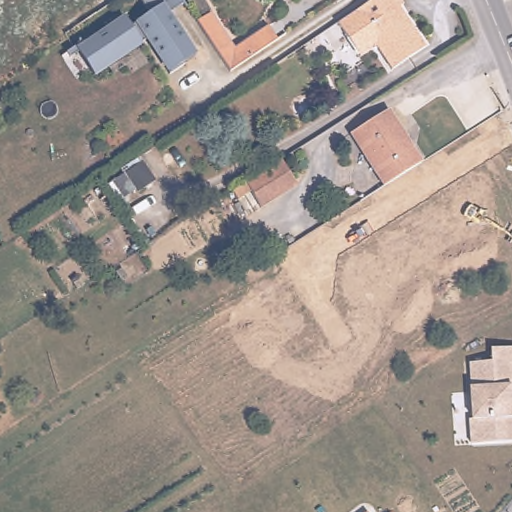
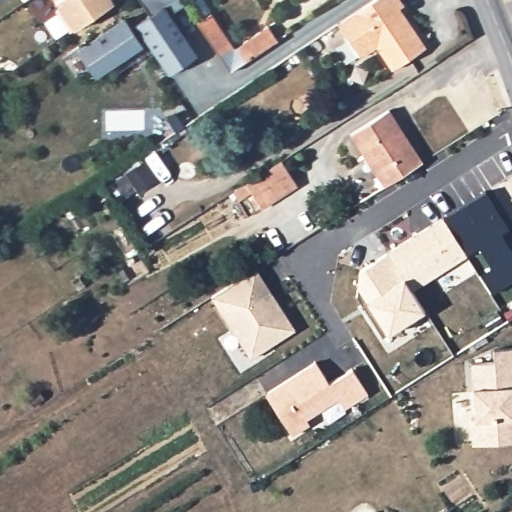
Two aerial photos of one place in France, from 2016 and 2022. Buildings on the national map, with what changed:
new [(114,3),(73,30),(70,33),(57,13),(59,9),(55,1),(55,0),(113,0),(114,3)]
unchanged [(171,10),(198,50),(173,67),(151,33),(91,74),(74,49),(122,17),(127,25),(146,13),(137,0),(186,0),(171,10)]
unchanged [(367,0),(405,0),(406,1),(401,5),(408,16),(427,44),(394,66),(378,43),(362,54),(337,20),(367,0)]
unchanged [(194,21),(212,12),(235,47),(269,23),(279,39),(230,72),(194,21)]
unchanged [(386,181),(353,130),(392,105),(425,156),(386,181)]
unchanged [(243,184),(278,161),(294,185),(259,208),(243,184)]
new [(493,266),(480,246),(469,253),(412,289),(424,310),(387,333),(366,301),(358,287),(360,269),(389,251),(445,215),(486,190),(511,227),(502,232),(512,247),(512,281),(495,292),(482,273),(493,266)]
unchanged [(250,357),(211,297),(255,268),(295,329),(250,357)]
unchanged [(470,419),(475,419),(471,364),(494,363),(493,350),(512,349),(512,441),(471,444),(470,419)]
new [(314,360),(327,381),(350,366),(366,392),(342,407),(336,397),(304,417),(308,422),(290,433),(264,392),(314,360)]
new [(445,512),(439,512),(443,509),(445,512)]

